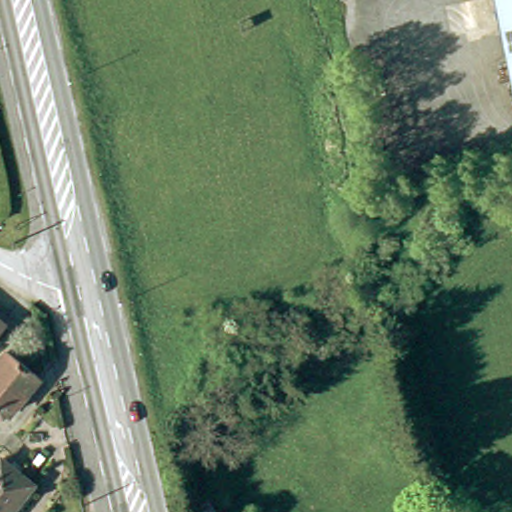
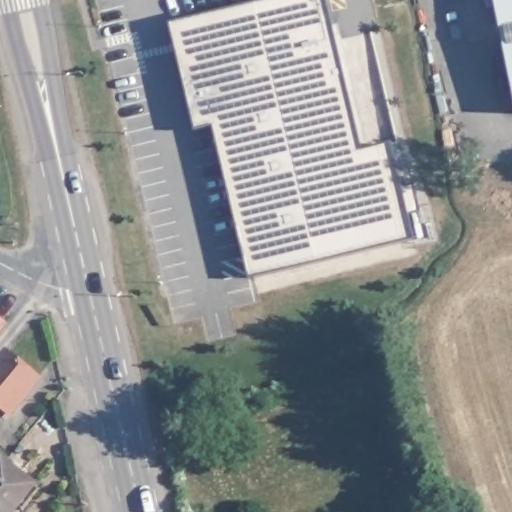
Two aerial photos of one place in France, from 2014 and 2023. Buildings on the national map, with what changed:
new [(277,0),(297,0),(300,10),(200,34),(207,64),(185,69),(175,24),(277,0)]
new [(207,64),(200,34),(300,10),(297,0),(329,0),(369,164),(398,156),(406,189),(420,185),(426,212),(412,216),(419,241),(259,280),(222,127),(201,132),(185,69),(207,64)]
unchanged [(512,80),(497,0),(512,0),(512,80)]
unchanged [(5,328),(0,334),(0,324),(5,328)]
unchanged [(11,353),(41,380),(12,413),(7,409),(0,416),(0,365),(11,353)]
unchanged [(39,486),(17,512),(0,512),(0,468),(7,460),(39,486)]

